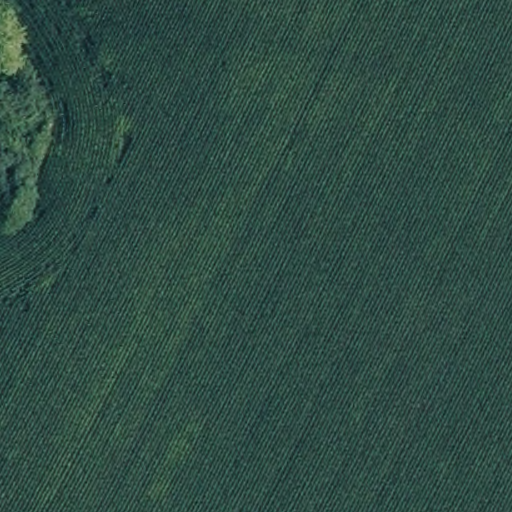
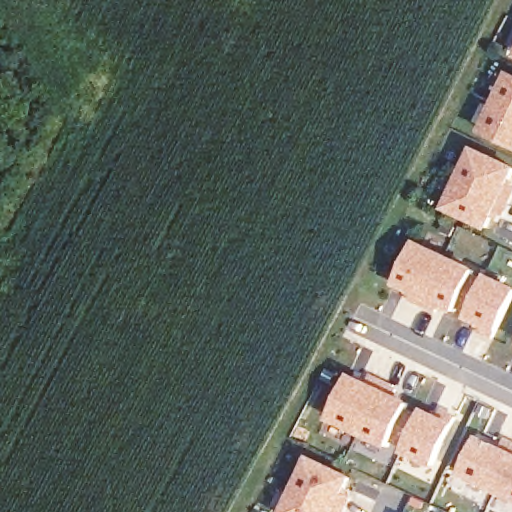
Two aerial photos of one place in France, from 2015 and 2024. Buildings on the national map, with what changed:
new [(511,75),(512,75),(512,111),(497,104),(511,75)]
new [(497,104),(512,111),(512,146),(484,134),(497,104)]
new [(489,232),(445,211),(474,149),(512,165),(512,186),(489,232)]
new [(454,312),(440,305),(437,312),(412,300),(414,294),(395,287),(418,242),(477,269),(454,312)]
new [(498,337),(466,320),(489,274),(512,285),(512,308),(498,337)]
new [(390,449),(329,421),(351,374),(412,402),(390,449)]
new [(436,468),(405,454),(425,408),(457,424),(436,468)]
new [(461,477),(481,438),(512,452),(512,500),(461,477)]
new [(340,512),(284,512),(311,456),(356,478),(340,512)]

